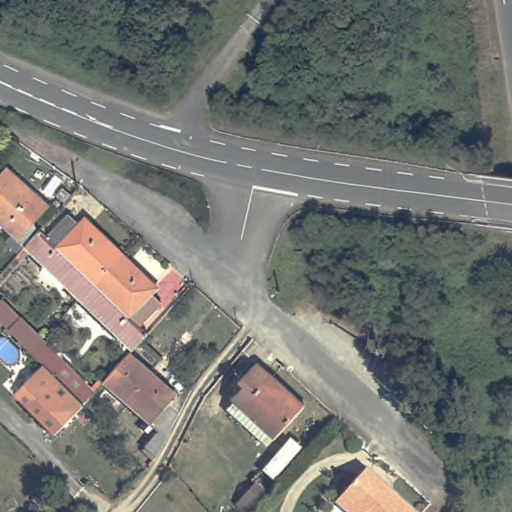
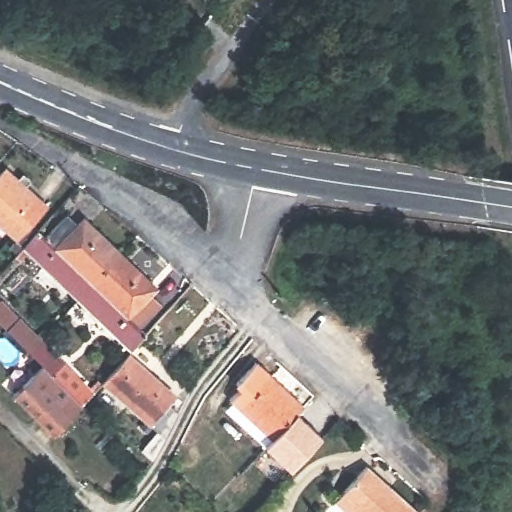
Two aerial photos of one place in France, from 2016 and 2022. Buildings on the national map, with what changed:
unchanged [(52,206),(23,239),(0,219),(0,203),(2,201),(0,199),(0,179),(9,169),(52,206)]
unchanged [(44,248),(65,225),(76,235),(81,230),(120,266),(92,294),(44,248)]
unchanged [(120,266),(156,300),(151,306),(160,315),(139,338),(92,294),(120,266)]
unchanged [(85,411),(80,407),(41,367),(0,324),(0,293),(99,395),(85,411)]
unchanged [(231,411),(238,404),(235,401),(246,388),(243,385),(262,364),(276,377),(276,376),(309,406),(278,440),(271,447),(231,411)]
unchanged [(129,365),(175,406),(168,413),(179,423),(156,466),(147,461),(157,442),(104,393),(129,365)]
unchanged [(41,367),(80,407),(54,436),(15,395),(41,367)]
new [(270,449),(300,416),(322,436),(292,470),(270,449)]
unchanged [(370,507),(360,498),(378,478),(418,512),(364,512),(370,507)]
unchanged [(256,481),(270,493),(251,512),(226,512),(256,481)]

